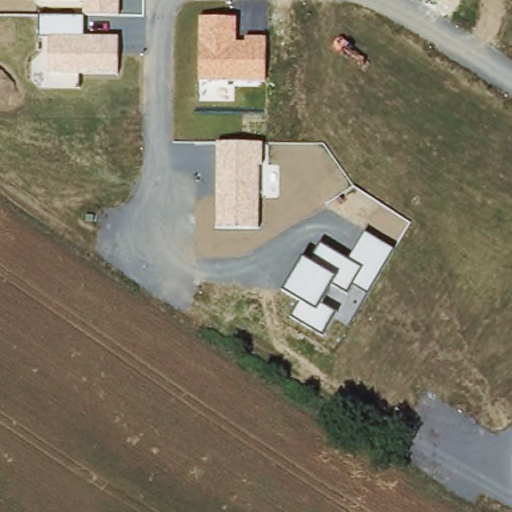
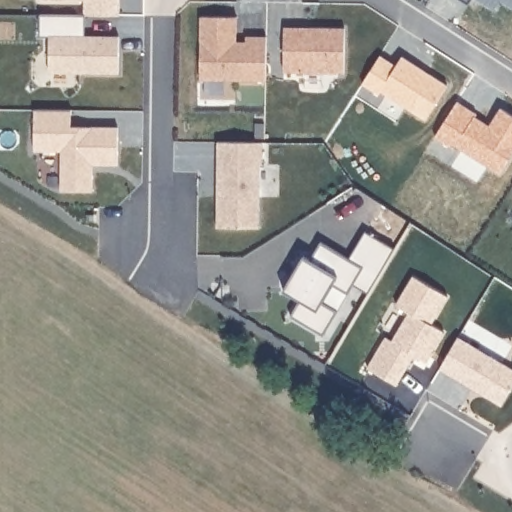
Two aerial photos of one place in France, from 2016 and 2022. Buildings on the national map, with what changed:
unchanged [(120,16),(85,17),(85,35),(120,36),(120,75),(47,76),(49,37),(40,37),(40,16),(83,17),(83,1),(41,1),(41,0),(120,0),(120,16)]
new [(467,4),(461,0),(470,0),(467,4)]
new [(500,1),(495,9),(479,0),(512,0),(512,7),(500,1)]
unchanged [(237,19),(237,41),(246,41),(246,37),(267,37),(267,81),(200,82),(199,18),(237,19)]
new [(283,72),(283,27),(345,28),(344,73),(283,72)]
new [(94,166),(92,192),(60,191),(61,152),(34,152),(34,111),(72,111),(72,127),(118,127),(118,166),(94,166)]
unchanged [(263,144),(262,166),(258,166),(258,229),(216,230),(217,142),(263,144)]
unchanged [(393,250),(367,293),(353,287),(348,293),(333,285),(322,304),(337,312),(323,336),(291,316),(301,300),(284,290),(303,258),(311,262),(322,245),(349,261),(365,234),(393,250)]
new [(430,325),(444,332),(426,362),(414,356),(397,385),(368,367),(386,337),(392,341),(408,312),(396,304),(413,276),(448,297),(430,325)]
new [(438,370),(457,338),(512,371),(512,387),(500,407),(472,390),(456,381),(438,370)]

